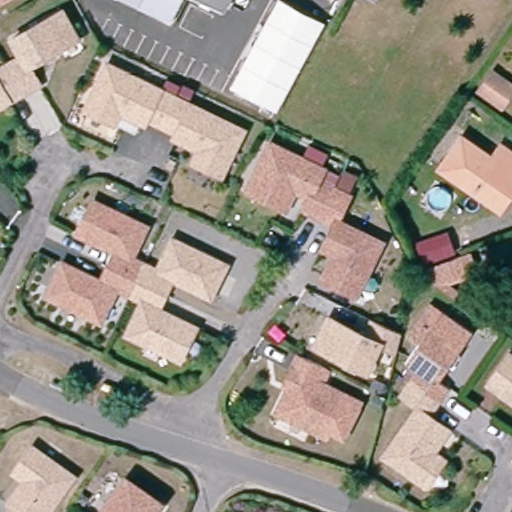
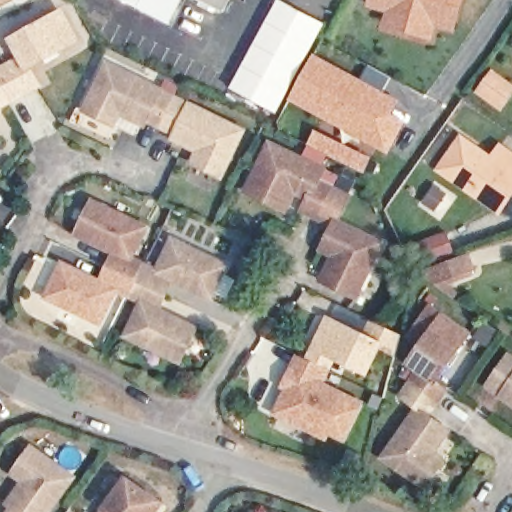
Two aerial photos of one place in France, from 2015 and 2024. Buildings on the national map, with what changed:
unchanged [(10,0),(0,6),(0,0),(10,0)]
unchanged [(112,4),(103,0),(137,0),(130,14),(112,4)]
unchanged [(130,14),(137,0),(182,0),(168,30),(130,14)]
unchanged [(186,0),(228,0),(221,15),(186,0)]
unchanged [(229,86),(271,8),(275,0),(279,0),(328,26),(281,114),(233,89),(229,86)]
new [(465,0),(455,34),(437,29),(432,45),(377,30),(384,13),(362,6),(365,0),(465,0)]
unchanged [(26,58),(16,40),(66,12),(81,39),(31,68),(42,85),(0,109),(0,72),(26,58)]
new [(314,54),(362,79),(369,64),(391,76),(383,91),(400,100),(392,114),(406,121),(388,155),(288,101),(314,54)]
unchanged [(144,119),(119,107),(112,119),(85,106),(107,60),(242,125),(221,171),(192,158),(198,145),(173,133),(176,129),(146,114),(144,119)]
unchanged [(488,62),(512,78),(512,89),(498,108),(471,89),(488,62)]
new [(372,158),(365,174),(327,155),(322,165),(340,174),(335,188),(317,180),(322,169),(301,159),(308,145),(307,144),(316,129),(372,158)]
unchanged [(512,189),(496,211),(487,204),(436,168),(458,137),(488,159),(498,146),(512,157),(512,189)]
unchanged [(294,190),(285,209),(246,191),(269,144),(322,169),(317,180),(347,194),(335,220),(381,242),(355,295),(322,279),(333,254),(322,248),(333,223),(304,209),(309,198),(294,190)]
new [(433,181),(449,193),(435,214),(418,203),(433,181)]
unchanged [(191,323),(175,355),(122,329),(137,298),(124,291),(110,284),(95,317),(42,292),(57,259),(96,278),(110,248),(72,229),(87,197),(140,223),(125,254),(138,261),(152,268),(167,235),(220,261),(205,293),(167,275),(152,304),(191,323)]
unchanged [(437,284),(417,269),(424,265),(411,240),(449,224),(455,252),(467,249),(472,268),(437,284)]
unchanged [(367,315),(396,329),(392,345),(377,338),(364,367),(312,342),(326,314),(360,330),(367,315)]
unchanged [(441,387),(422,414),(443,429),(427,452),(438,459),(421,485),(379,456),(413,408),(396,396),(415,369),(404,362),(437,314),(462,333),(430,379),(441,387)]
unchanged [(321,383),(360,403),(343,438),(328,430),(327,433),(312,426),(311,429),(276,412),(288,388),(283,386),(299,354),(327,369),(321,383)]
unchanged [(512,400),(493,387),(511,361),(512,361),(512,400)]
unchanged [(19,507),(14,504),(30,482),(19,474),(37,449),(78,478),(53,512),(15,512),(19,507)]
unchanged [(101,506),(106,509),(127,480),(161,504),(155,512),(97,512),(101,506)]

